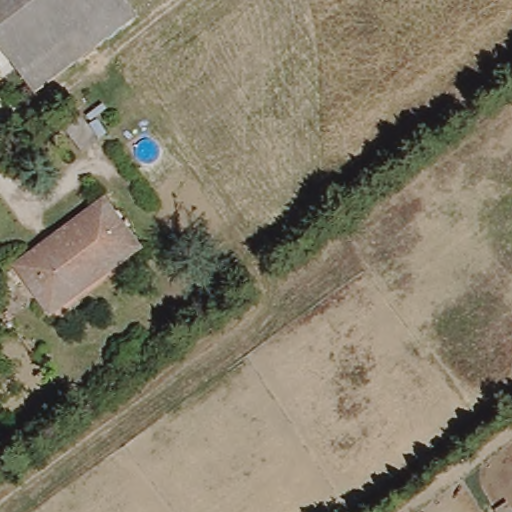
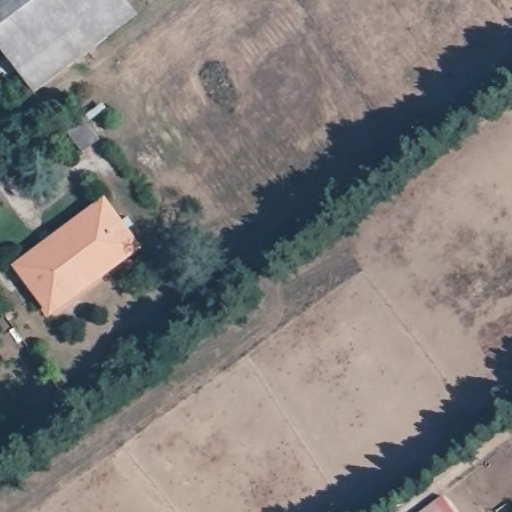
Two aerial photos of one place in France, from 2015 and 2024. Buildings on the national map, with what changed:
unchanged [(129,0),(136,10),(32,86),(0,42),(0,0),(129,0)]
unchanged [(65,125),(79,115),(98,140),(85,152),(65,125)]
unchanged [(102,198),(132,240),(50,302),(19,261),(102,198)]
new [(442,495),(455,512),(418,512),(442,495)]

